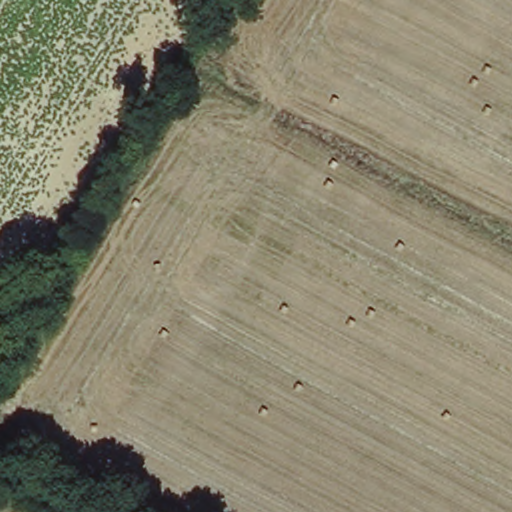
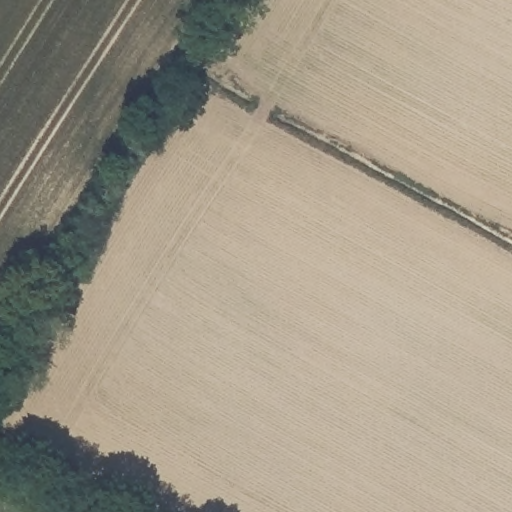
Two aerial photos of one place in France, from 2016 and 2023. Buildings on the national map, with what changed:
[]

